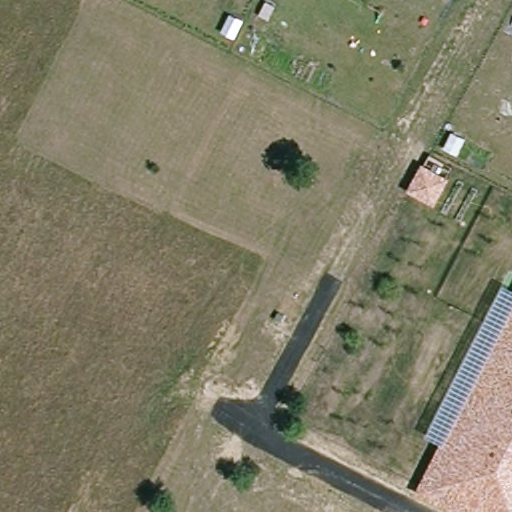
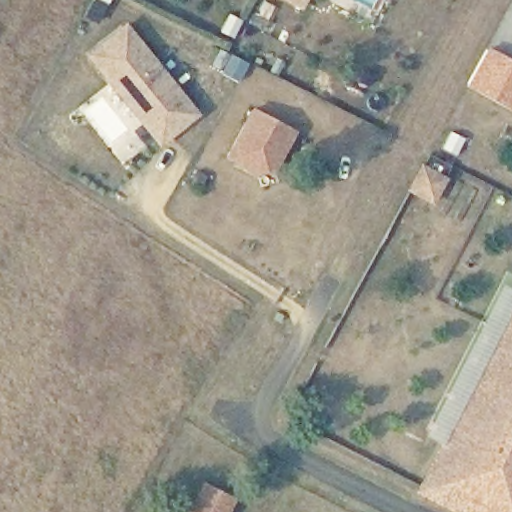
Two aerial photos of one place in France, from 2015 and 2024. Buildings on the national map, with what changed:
new [(301,11),(279,0),(307,0),(301,11)]
new [(124,24),(199,114),(160,147),(85,55),(124,24)]
new [(512,60),(512,110),(467,87),(489,46),(512,60)]
new [(295,132),(277,168),(258,174),(225,158),(251,108),(295,132)]
unchanged [(449,179),(434,206),(407,191),(422,164),(449,179)]
unchanged [(450,512),(414,493),(439,444),(426,436),(504,283),(512,288),(512,512),(450,512)]
new [(227,512),(186,512),(200,482),(235,493),(227,512)]

